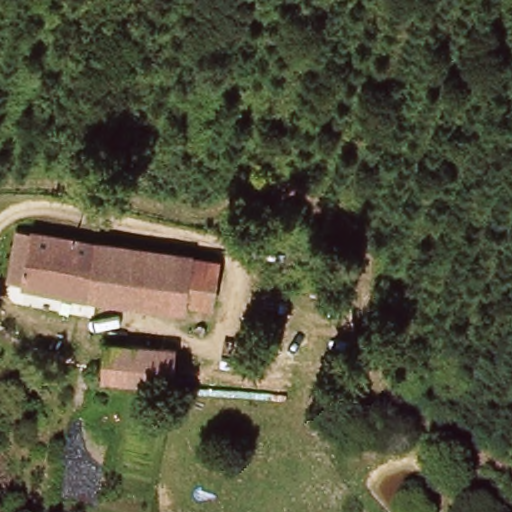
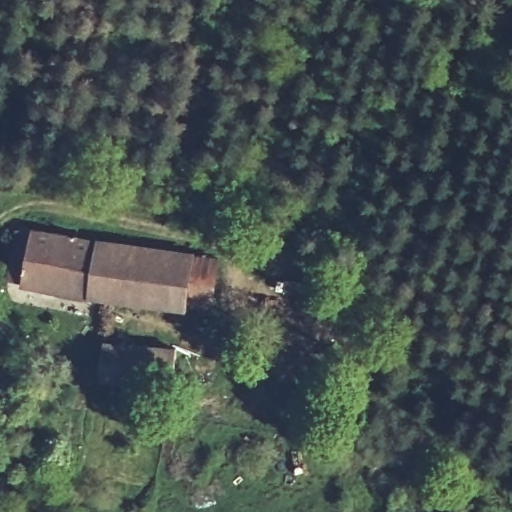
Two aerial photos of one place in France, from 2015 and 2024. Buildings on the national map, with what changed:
unchanged [(183,310),(25,292),(33,236),(99,246),(189,255),(184,303),(183,310)]
unchanged [(218,258),(213,307),(184,303),(189,255),(218,258)]
unchanged [(177,351),(174,386),(100,381),(103,345),(177,351)]

